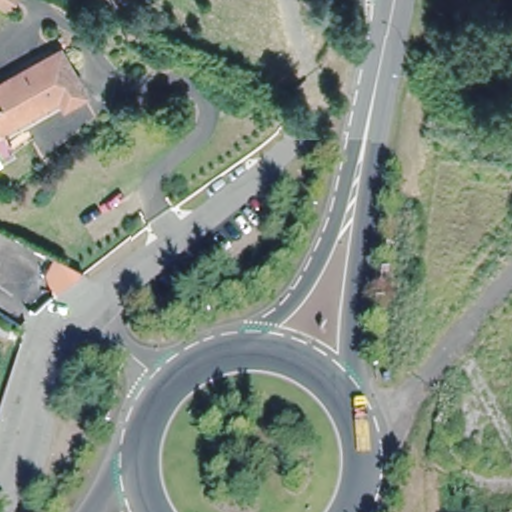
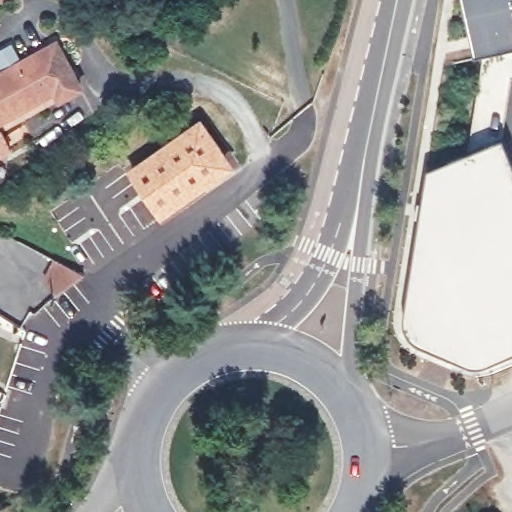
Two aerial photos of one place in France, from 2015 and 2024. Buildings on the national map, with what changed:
new [(475,57),(463,0),(512,0),(512,49),(475,57)]
unchanged [(0,68),(53,36),(81,82),(61,96),(0,130),(0,129),(0,68)]
new [(237,168),(164,219),(129,169),(202,118),(237,168)]
new [(512,159),(512,355),(492,364),(483,366),(472,366),(414,339),(408,329),(406,313),(430,169),(503,139),(512,159)]
unchanged [(37,278),(62,259),(77,282),(52,300),(37,278)]

